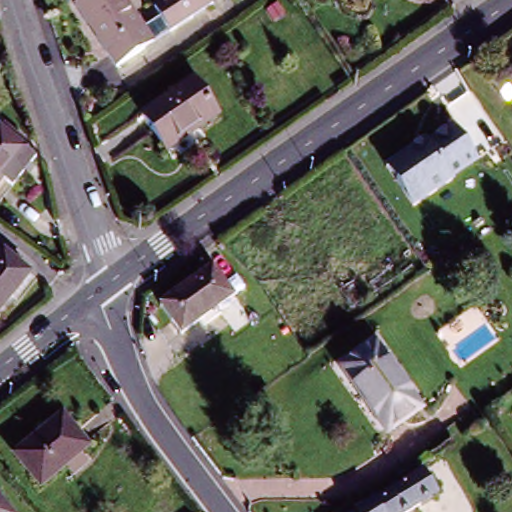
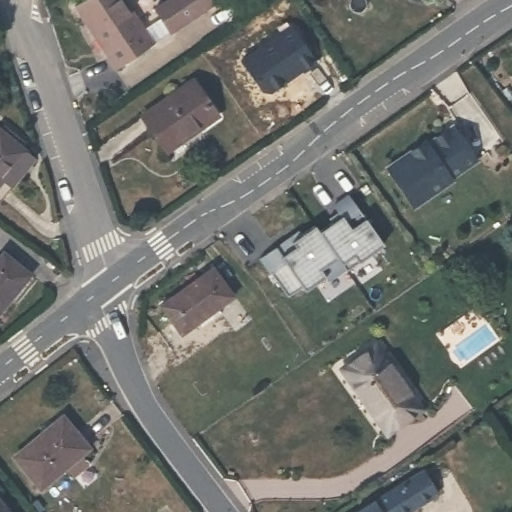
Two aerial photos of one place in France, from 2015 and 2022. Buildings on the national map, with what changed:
unchanged [(114,71),(73,14),(92,0),(118,0),(136,24),(150,45),(114,71)]
unchanged [(153,6),(161,0),(212,0),(169,31),(153,6)]
unchanged [(156,147),(133,113),(184,75),(209,107),(156,147)]
unchanged [(31,146),(0,189),(0,124),(23,140),(31,146)]
unchanged [(474,156),(449,174),(453,179),(412,207),(386,168),(452,124),(474,156)]
new [(328,281),(308,295),(306,291),(291,301),(263,262),(278,250),(301,235),(304,239),(317,229),(319,231),(331,222),(340,216),(336,210),(351,199),(386,247),(349,274),(332,287),(328,281)]
demolished [(415,267),(355,313),(334,289),(397,246),(415,267)]
unchanged [(5,254),(30,276),(0,314),(0,261),(5,254)]
unchanged [(176,328),(157,300),(209,262),(228,289),(176,328)]
unchanged [(393,427),(349,368),(381,346),(423,403),(393,427)]
unchanged [(70,463),(62,453),(34,475),(11,447),(61,408),(84,436),(75,442),(84,453),(70,463)]
unchanged [(409,512),(362,512),(423,472),(438,493),(409,512)]
unchanged [(9,512),(0,512),(0,500),(9,512)]

